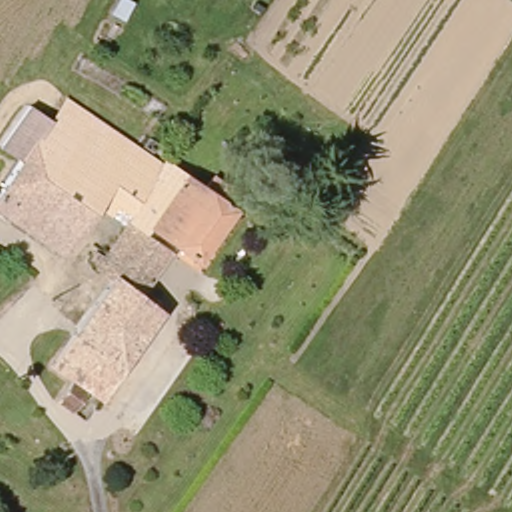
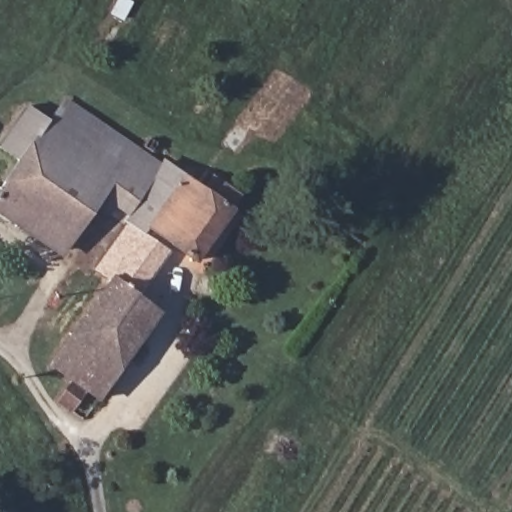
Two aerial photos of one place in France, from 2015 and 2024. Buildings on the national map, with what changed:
unchanged [(51,121),(55,116),(66,101),(157,163),(146,186),(51,121)]
unchanged [(129,213),(120,208),(113,217),(94,206),(63,253),(0,213),(0,181),(14,160),(4,151),(31,109),(51,121),(146,186),(144,192),(129,213)]
unchanged [(55,372),(112,282),(95,270),(129,213),(144,192),(146,186),(161,166),(202,194),(213,181),(223,189),(241,201),(200,263),(148,230),(141,238),(167,254),(138,299),(161,318),(103,405),(89,396),(74,417),(61,408),(74,387),(55,372)]

